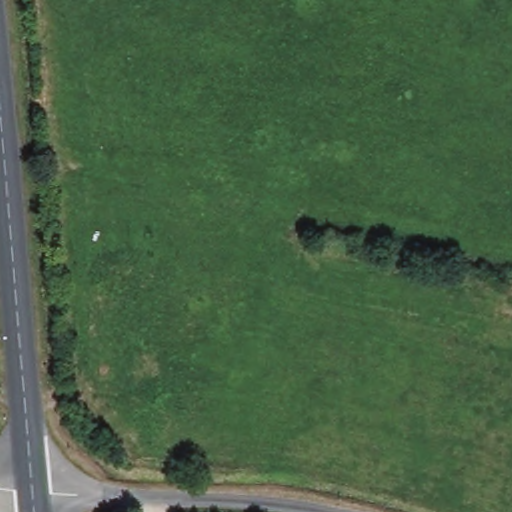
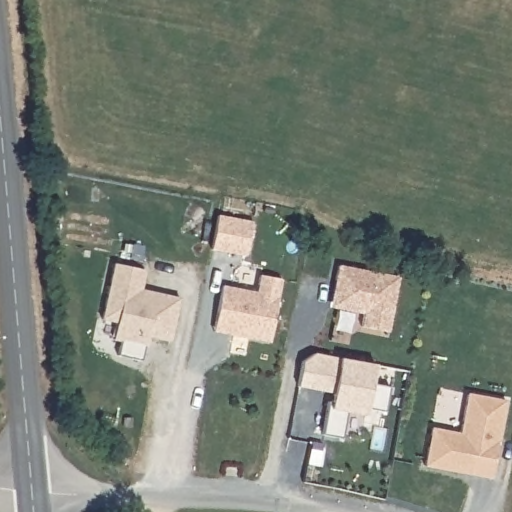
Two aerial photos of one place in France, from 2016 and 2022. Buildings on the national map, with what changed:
new [(252,221),(246,257),(211,250),(218,215),(252,221)]
new [(146,270),(142,290),(180,297),(171,341),(150,337),(148,346),(144,345),(141,360),(119,355),(122,342),(114,340),(117,323),(102,320),(114,264),(146,270)]
new [(398,277),(389,331),(362,326),(364,313),(330,308),(338,265),(398,277)]
new [(256,291),(259,275),(283,279),(270,342),(213,332),(223,285),(256,291)]
new [(315,353),(340,358),(374,365),(370,383),(390,387),(386,414),(367,409),(365,415),(346,410),(341,437),(323,434),(327,408),(330,409),(332,394),(297,388),(302,361),(315,353)]
new [(506,400),(491,478),(424,466),(431,426),(460,432),(467,392),(506,400)]

